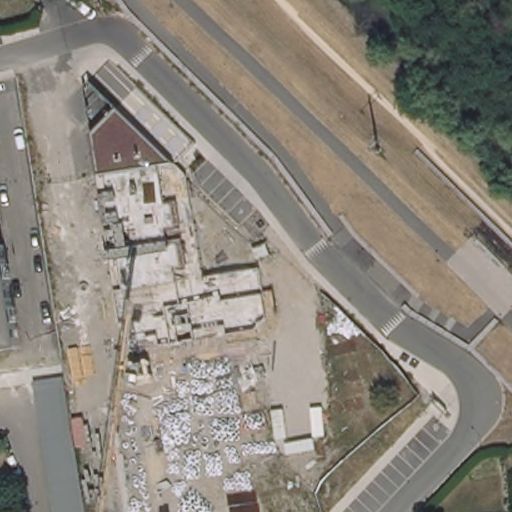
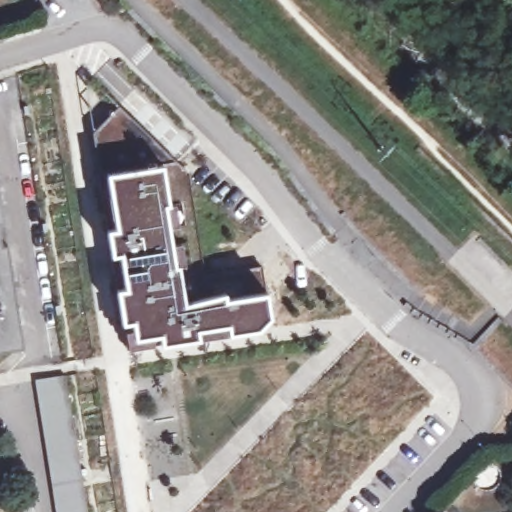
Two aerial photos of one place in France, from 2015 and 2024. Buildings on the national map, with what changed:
unchanged [(172,160),(100,172),(94,133),(117,109),(172,160)]
new [(225,297),(224,291),(184,301),(178,263),(174,263),(165,206),(169,205),(161,162),(172,160),(186,172),(203,275),(262,266),(265,291),(225,297)]
new [(169,205),(165,206),(174,263),(178,263),(184,301),(224,291),(225,297),(265,291),(267,316),(254,329),(227,333),(226,326),(197,331),(197,337),(160,343),(159,336),(133,340),(130,322),(121,323),(115,288),(124,287),(120,255),(110,256),(105,228),(115,227),(105,171),(161,162),(169,205)]
unchanged [(0,348),(0,177),(7,219),(2,220),(5,242),(10,242),(26,343),(0,348)]
unchanged [(71,381),(92,512),(62,512),(42,386),(63,383),(71,381)]

